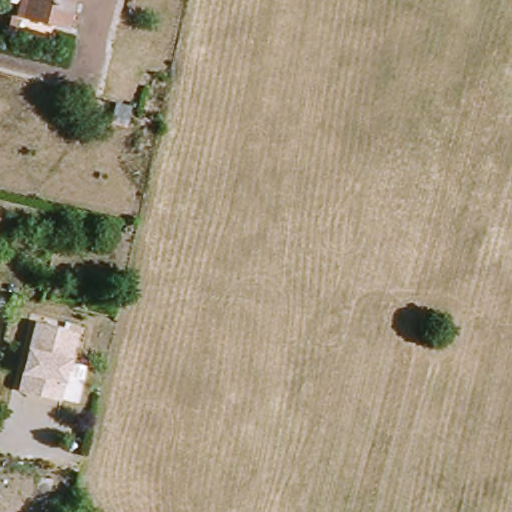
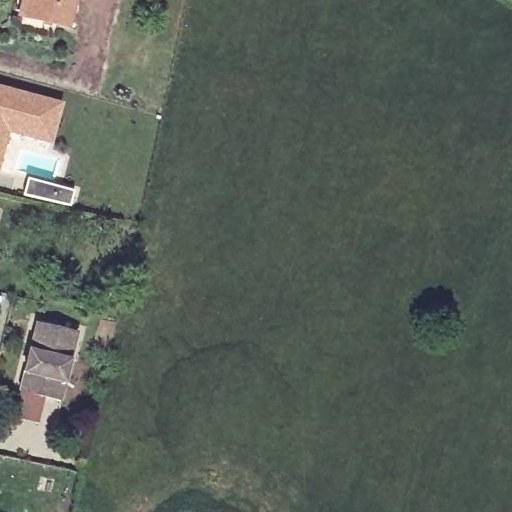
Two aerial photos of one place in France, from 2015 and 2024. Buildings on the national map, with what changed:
unchanged [(74,0),(67,28),(26,18),(18,16),(22,0),(74,0)]
new [(59,105),(50,141),(7,130),(0,156),(0,89),(59,105)]
unchanged [(37,323),(77,332),(60,402),(20,392),(37,323)]

